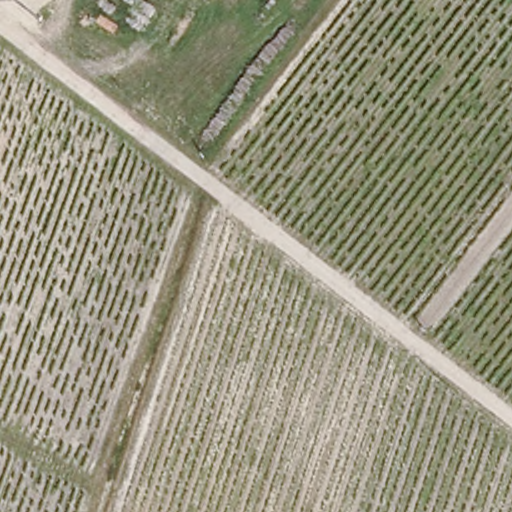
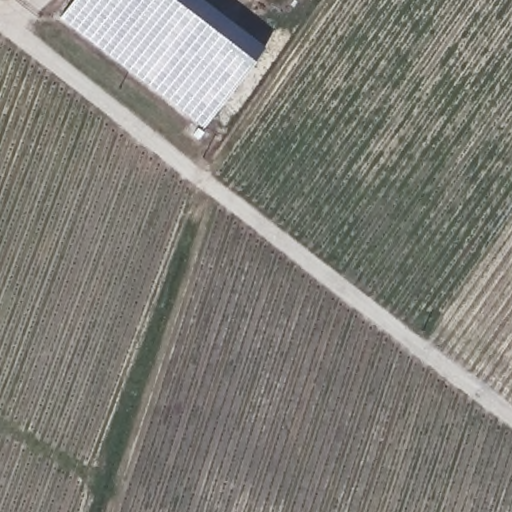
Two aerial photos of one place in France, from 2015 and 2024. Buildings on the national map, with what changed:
new [(60,17),(74,0),(205,0),(265,46),(203,127),(60,17)]

